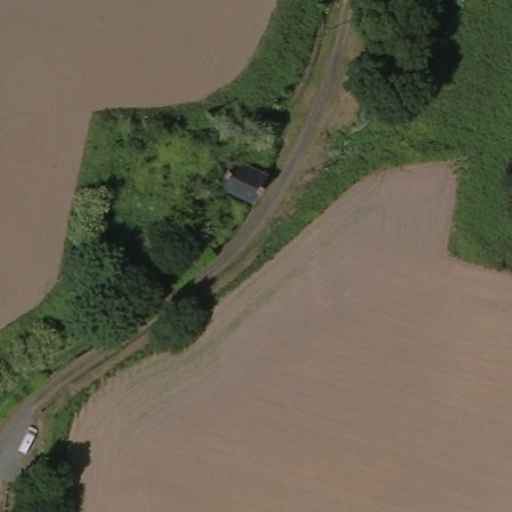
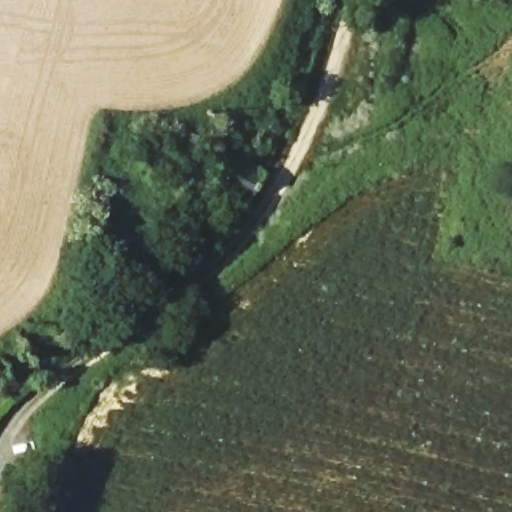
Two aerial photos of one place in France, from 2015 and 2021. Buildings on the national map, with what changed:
unchanged [(222,186),(242,158),(266,172),(246,198),(222,186)]
unchanged [(169,178),(181,166),(187,172),(176,184),(169,178)]

